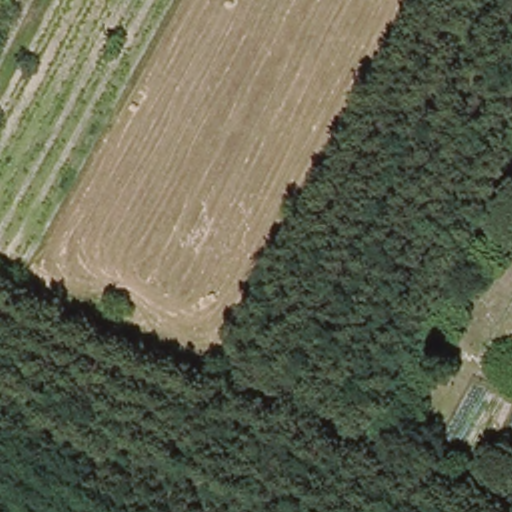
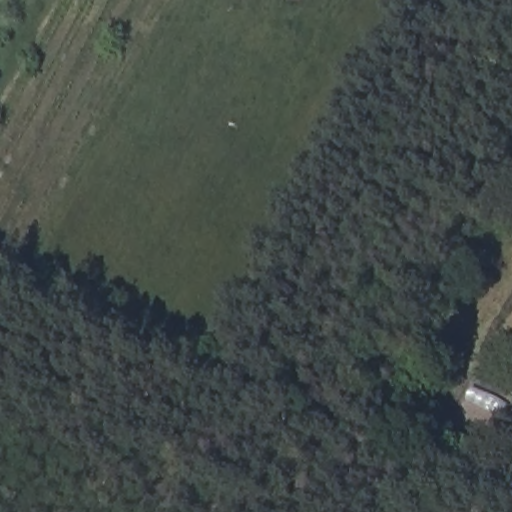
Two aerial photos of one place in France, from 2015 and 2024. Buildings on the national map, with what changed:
[]

